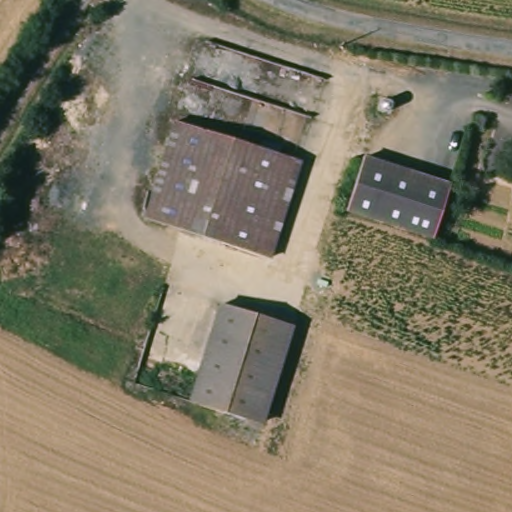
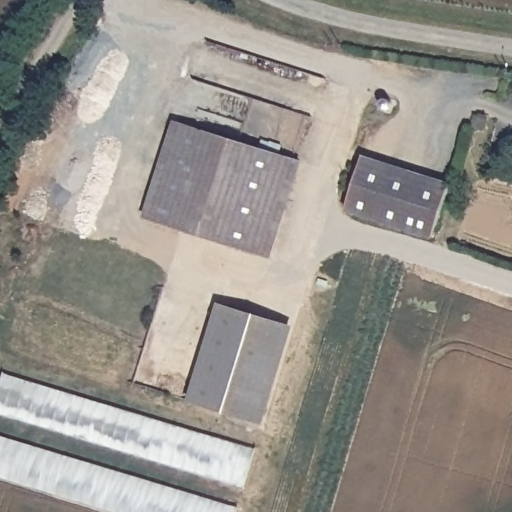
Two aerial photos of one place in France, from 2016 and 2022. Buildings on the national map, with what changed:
unchanged [(302,167),(267,260),(146,215),(182,121),(302,167)]
unchanged [(452,185),(433,238),(347,205),(366,152),(452,185)]
unchanged [(292,331),(257,425),(200,403),(235,310),(292,331)]
new [(0,412),(0,385),(4,371),(256,446),(245,486),(0,412)]
new [(238,506),(236,512),(120,512),(0,476),(0,434),(238,506)]

